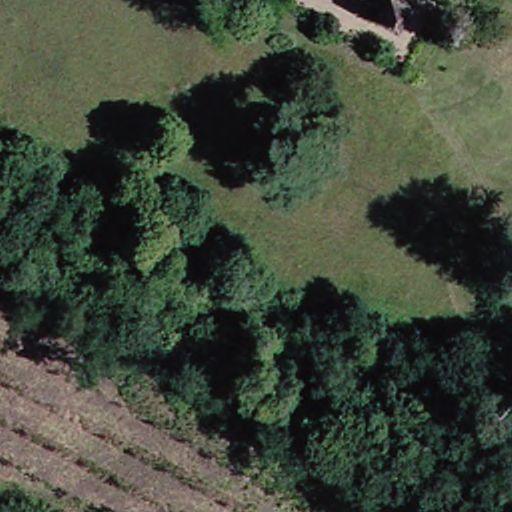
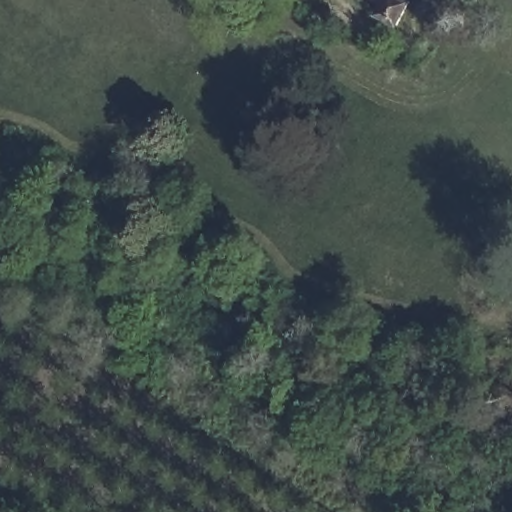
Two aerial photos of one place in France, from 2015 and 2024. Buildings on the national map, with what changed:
unchanged [(373,8),(361,0),(394,0),(409,10),(398,25),(373,8)]

